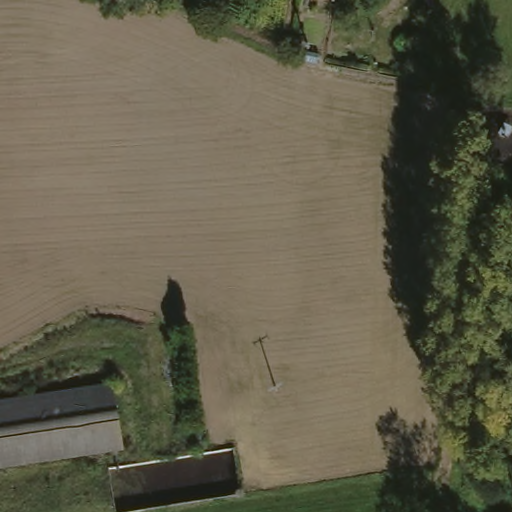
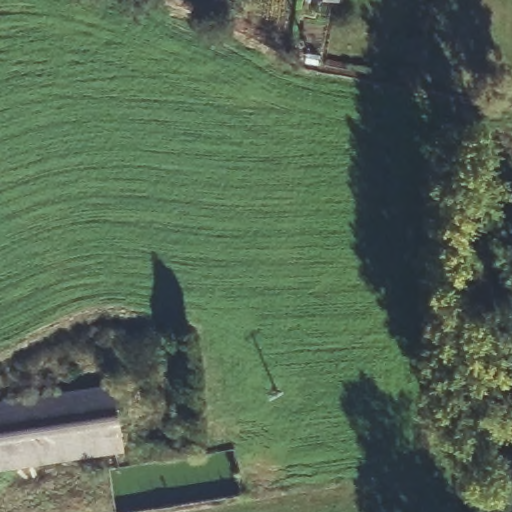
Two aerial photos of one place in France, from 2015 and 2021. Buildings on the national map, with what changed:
unchanged [(0,400),(113,382),(121,444),(0,462),(0,400)]

